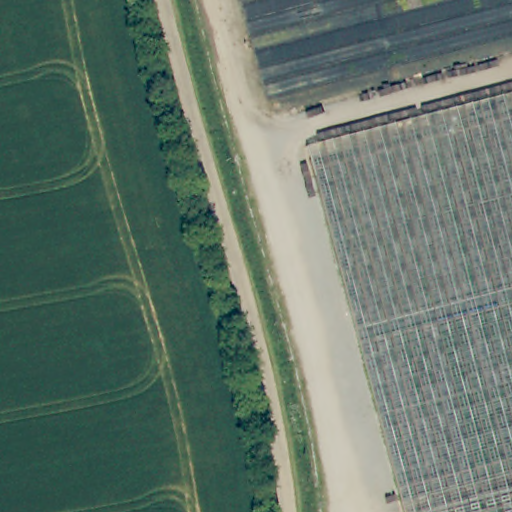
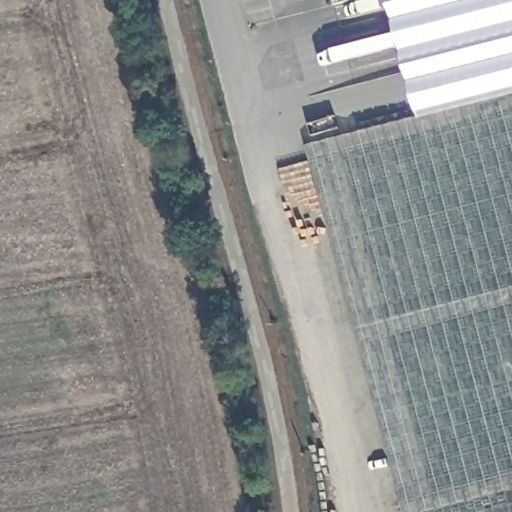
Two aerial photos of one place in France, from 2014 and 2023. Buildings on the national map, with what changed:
new [(420,109),(390,0),(512,0),(512,86),(420,109)]
unchanged [(399,512),(302,138),(512,86),(512,512),(399,512)]

